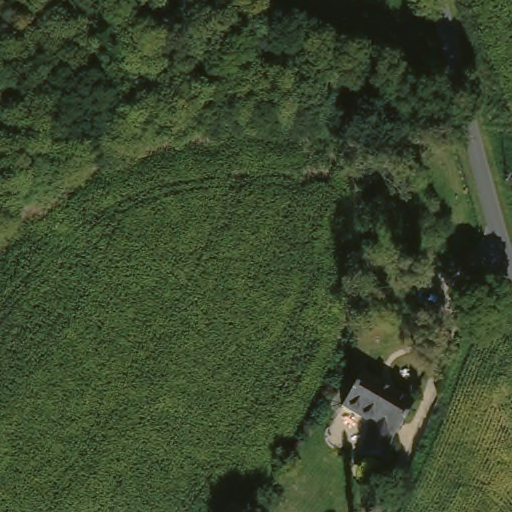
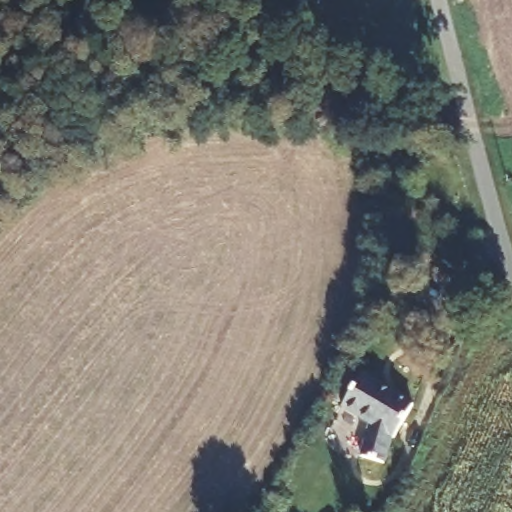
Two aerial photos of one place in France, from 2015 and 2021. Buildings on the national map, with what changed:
unchanged [(397,437),(389,465),(366,458),(375,425),(347,408),(366,375),(418,406),(399,438),(397,437)]

